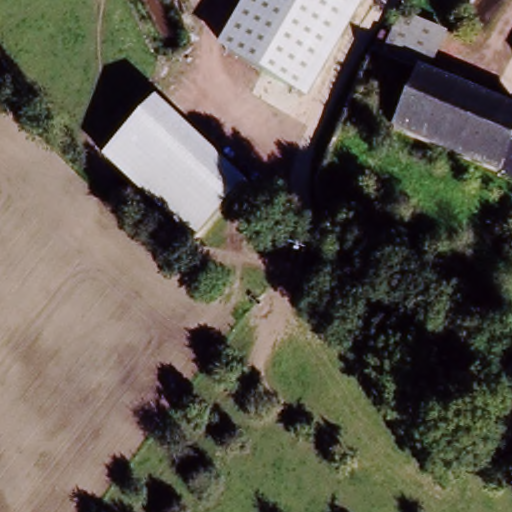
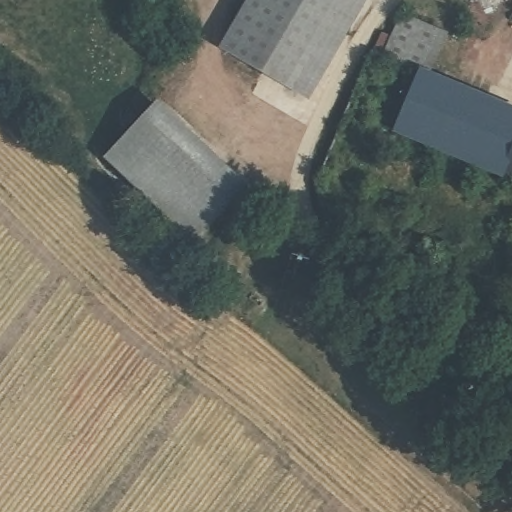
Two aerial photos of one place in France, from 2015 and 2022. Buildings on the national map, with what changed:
unchanged [(215,50),(245,0),(367,0),(307,102),(215,50)]
unchanged [(443,35),(429,70),(382,50),(399,15),(443,35)]
unchanged [(390,134),(413,74),(512,109),(512,181),(390,134)]
unchanged [(247,185),(192,245),(102,154),(155,100),(247,185)]

